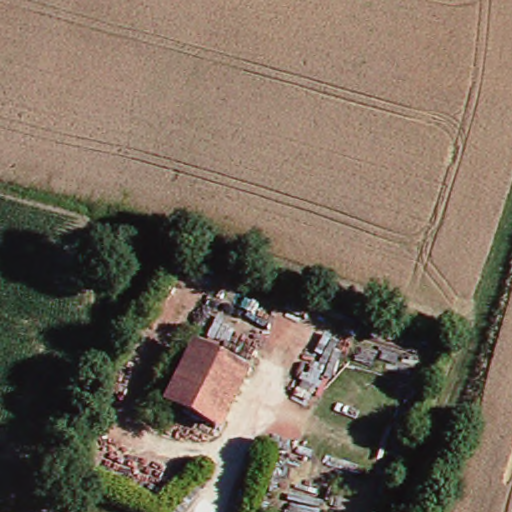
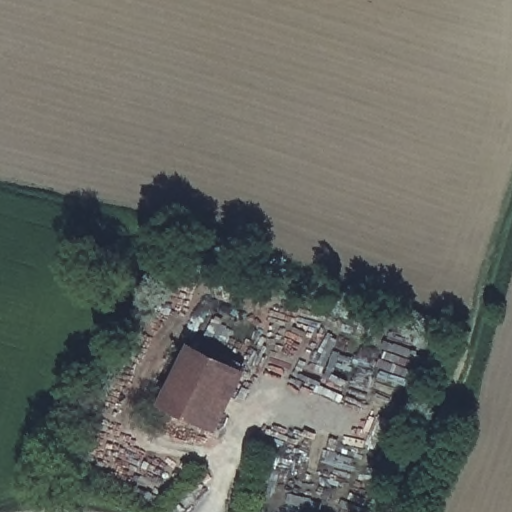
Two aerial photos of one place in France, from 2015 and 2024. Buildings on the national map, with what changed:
unchanged [(249,365),(227,425),(177,407),(198,347),(249,365)]

